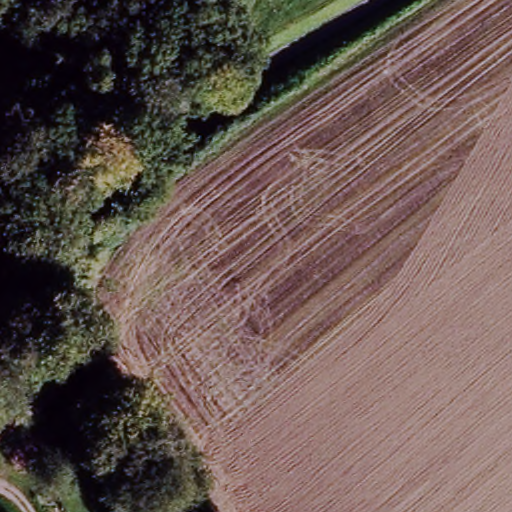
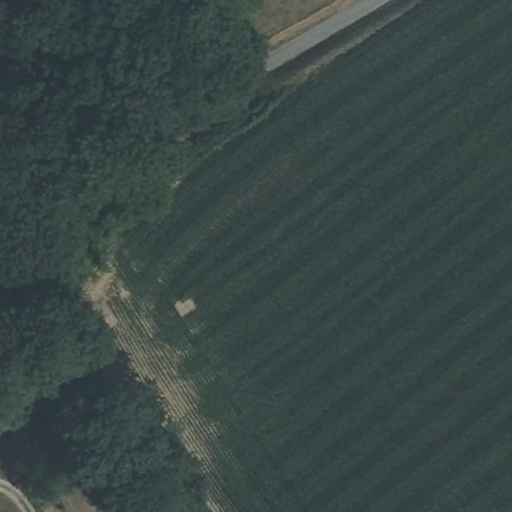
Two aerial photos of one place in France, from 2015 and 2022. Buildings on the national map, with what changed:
unchanged [(0,434),(0,394),(37,368),(56,395),(0,434)]
unchanged [(159,512),(129,512),(148,497),(159,512)]

